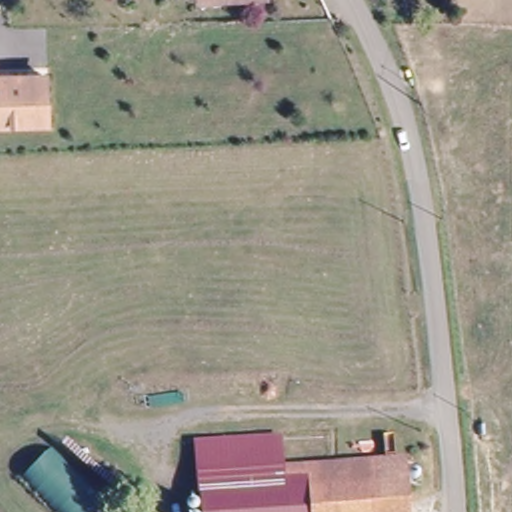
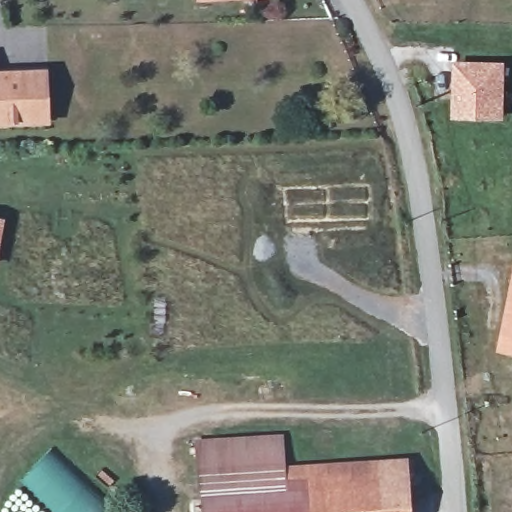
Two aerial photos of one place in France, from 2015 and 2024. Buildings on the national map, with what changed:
new [(507,61),(506,120),(452,119),(453,60),(507,61)]
unchanged [(44,125),(0,123),(0,74),(45,76),(44,125)]
new [(0,219),(0,216),(1,217),(0,219)]
new [(497,352),(512,279),(512,355),(497,352)]
unchanged [(284,435),(284,489),(204,492),(202,437),(284,435)]
unchanged [(51,449),(108,504),(101,512),(58,512),(22,478),(51,449)]
demolished [(492,454),(512,453),(512,512),(494,512),(492,454)]
unchanged [(293,464),(326,462),(402,459),(404,465),(406,512),(204,512),(204,492),(284,489),(292,488),(293,464)]

